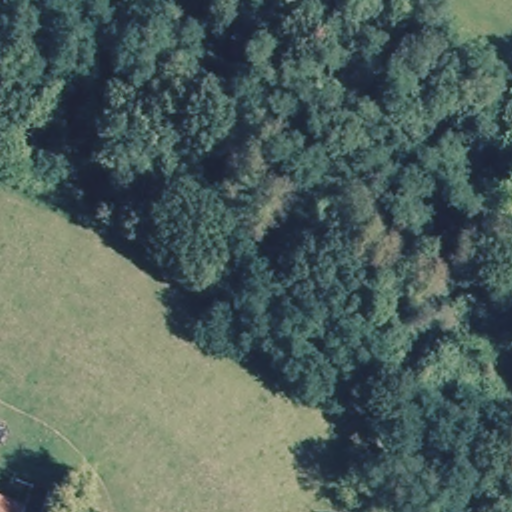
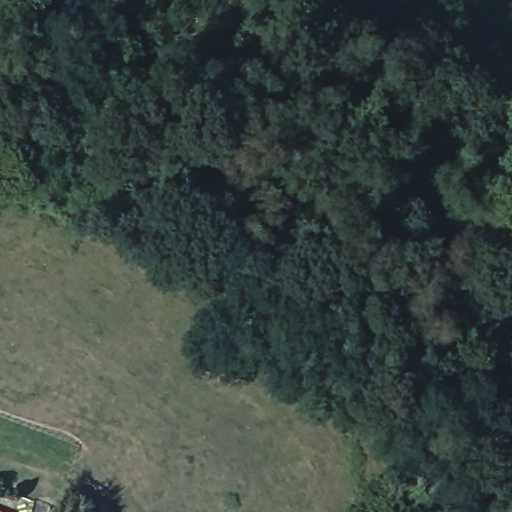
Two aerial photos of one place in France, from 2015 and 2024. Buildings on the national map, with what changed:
unchanged [(2,512),(0,512),(0,511),(2,512)]

